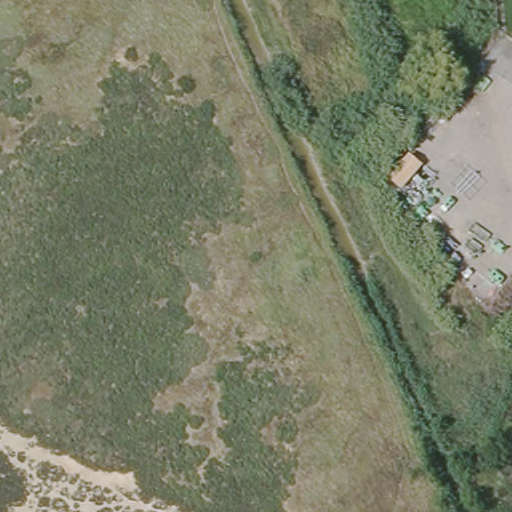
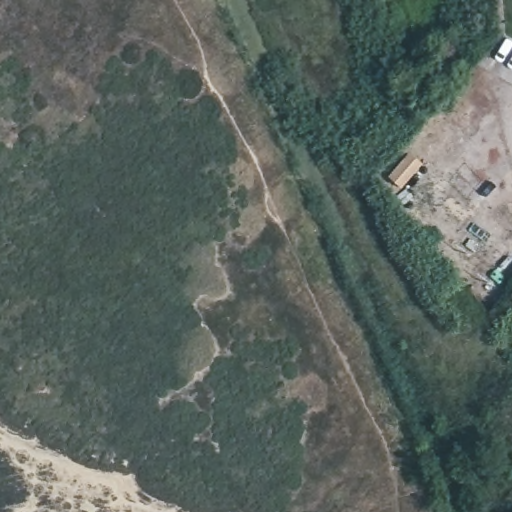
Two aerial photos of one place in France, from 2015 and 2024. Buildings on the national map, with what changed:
[]

